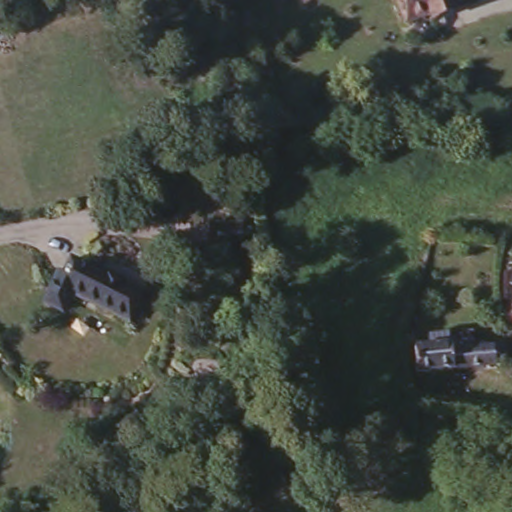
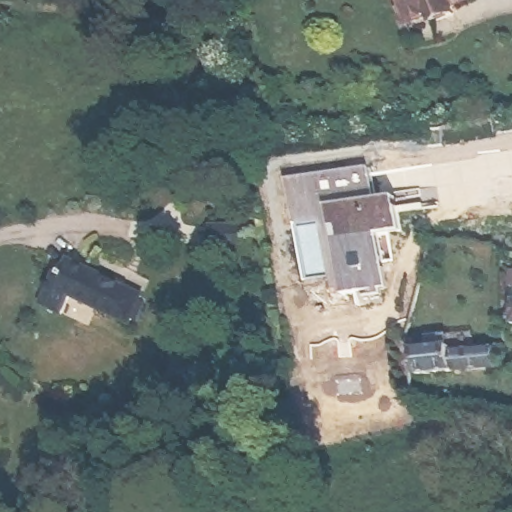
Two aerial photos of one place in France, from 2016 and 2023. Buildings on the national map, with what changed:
unchanged [(440,14),(426,19),(424,13),(400,20),(393,0),(458,0),(448,4),(450,11),(440,14)]
unchanged [(449,124),(448,111),(467,108),(464,87),(493,83),(496,105),(498,118),(449,124)]
unchanged [(230,163),(247,161),(249,176),(232,178),(230,163)]
new [(378,173),(381,206),(409,204),(411,240),(383,241),(385,293),(343,297),(330,299),(326,219),(291,220),(288,179),(378,173)]
new [(214,223),(244,223),(244,243),(214,243),(214,223)]
unchanged [(71,257),(145,293),(132,320),(58,287),(71,257)]
unchanged [(512,298),(512,319),(510,319),(512,298)]
unchanged [(451,353),(504,348),(506,366),(453,370),(452,372),(416,374),(414,351),(430,350),(429,341),(447,339),(447,349),(450,349),(451,353)]

